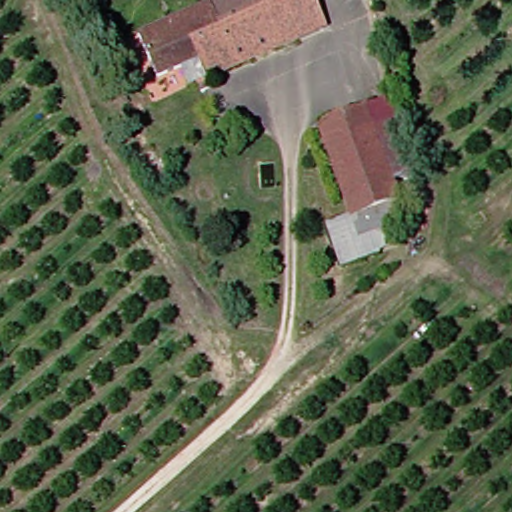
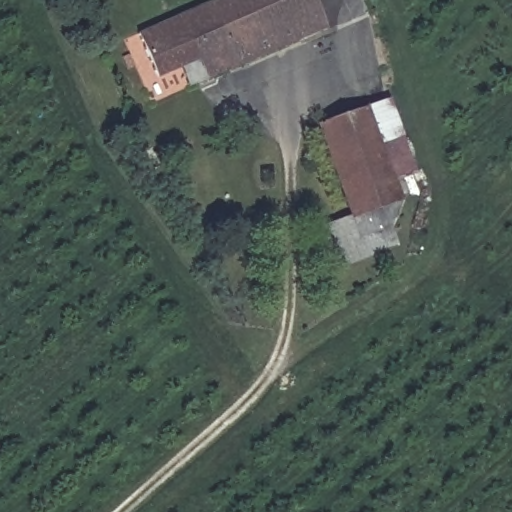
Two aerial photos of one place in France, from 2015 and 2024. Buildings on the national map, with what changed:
unchanged [(210,76),(200,55),(158,74),(139,32),(210,0),(284,0),(300,36),(210,76)]
unchanged [(300,36),(284,0),(313,0),(324,26),(300,36)]
unchanged [(326,126),(394,99),(420,170),(397,178),(404,197),(358,213),(326,126)]
unchanged [(419,235),(344,264),(327,225),(358,213),(404,197),(419,235)]

